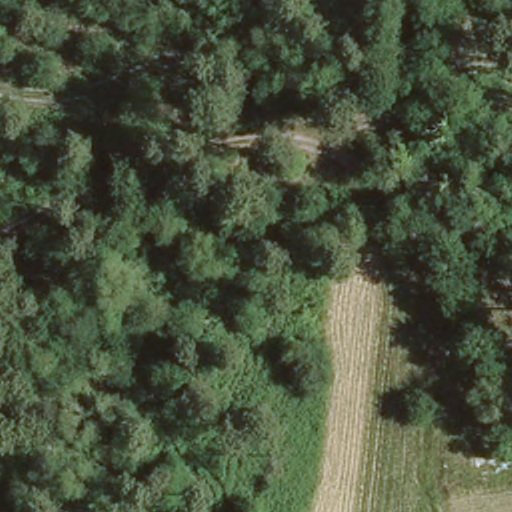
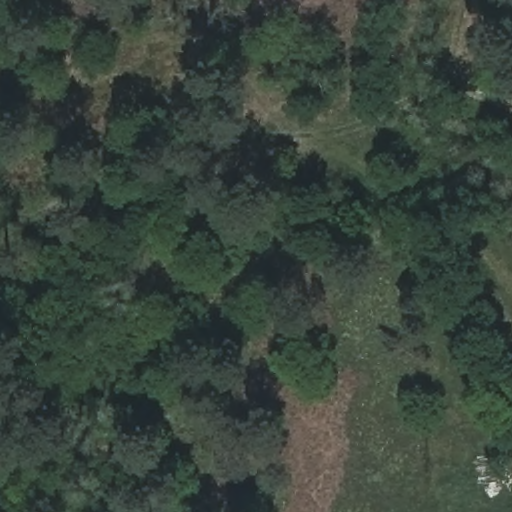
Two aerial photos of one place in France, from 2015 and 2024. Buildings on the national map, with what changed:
[]

